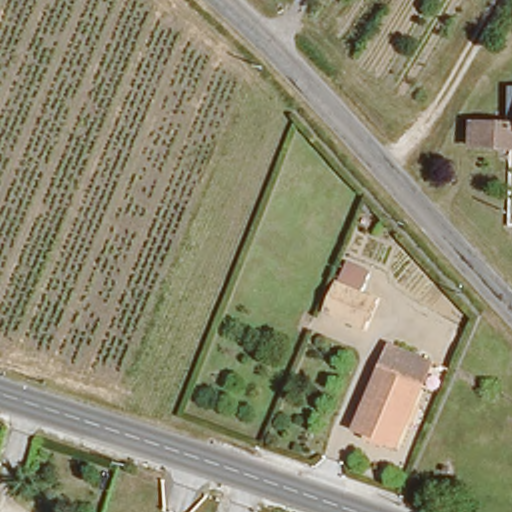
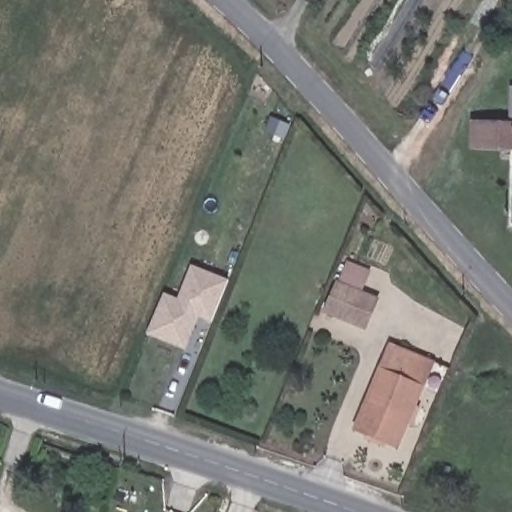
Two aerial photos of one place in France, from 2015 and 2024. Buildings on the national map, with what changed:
unchanged [(467,148),(467,124),(505,126),(507,89),(512,90),(512,150),(467,148)]
new [(166,291),(180,297),(194,263),(232,279),(215,320),(201,314),(187,347),(150,331),(166,291)]
unchanged [(338,279),(376,295),(365,323),(327,308),(338,279)]
unchanged [(413,424),(407,422),(397,445),(387,441),(368,433),(358,430),(392,346),(432,362),(413,407),(419,409),(413,424)]

